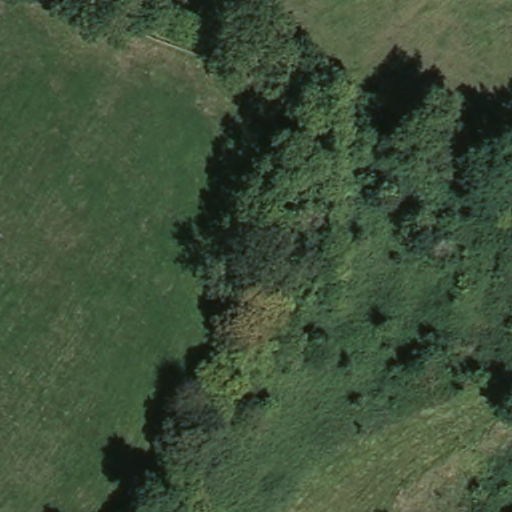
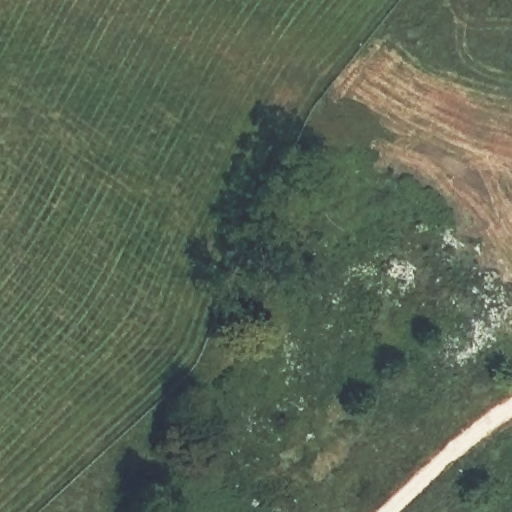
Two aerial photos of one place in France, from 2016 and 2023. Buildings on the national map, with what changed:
[]

